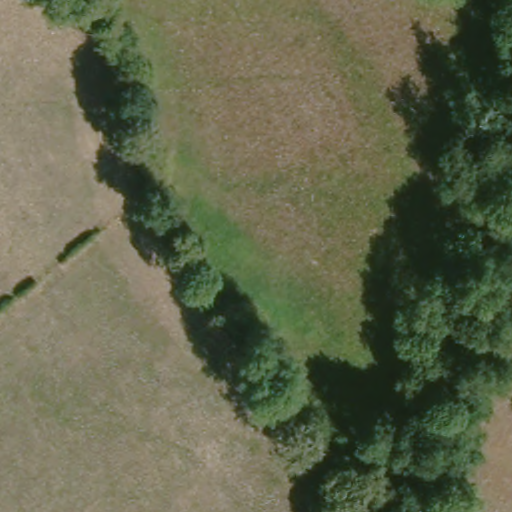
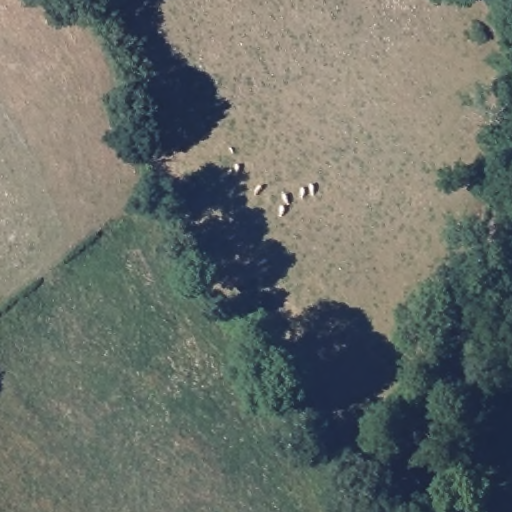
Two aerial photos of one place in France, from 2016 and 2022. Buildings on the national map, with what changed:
[]

